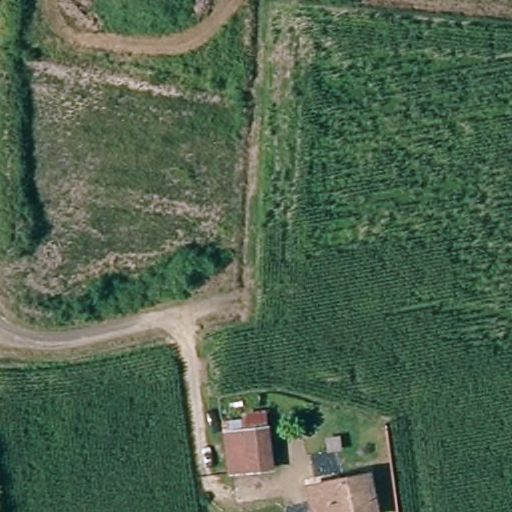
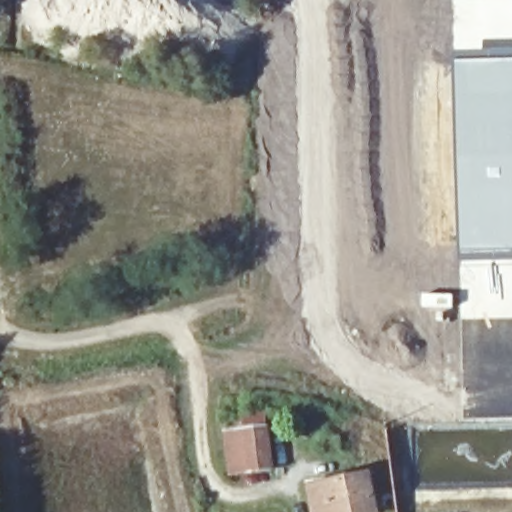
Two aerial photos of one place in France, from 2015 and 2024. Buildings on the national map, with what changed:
new [(509,49),(512,49),(512,255),(462,257),(457,60),(509,54),(509,49)]
unchanged [(271,465),(231,475),(222,435),(262,426),(271,465)]
unchanged [(348,441),(336,443),(334,433),(346,431),(348,441)]
unchanged [(312,512),(308,488),(367,475),(375,512),(312,512)]

